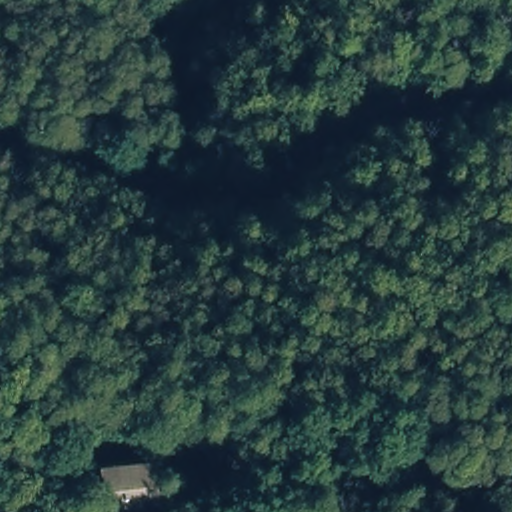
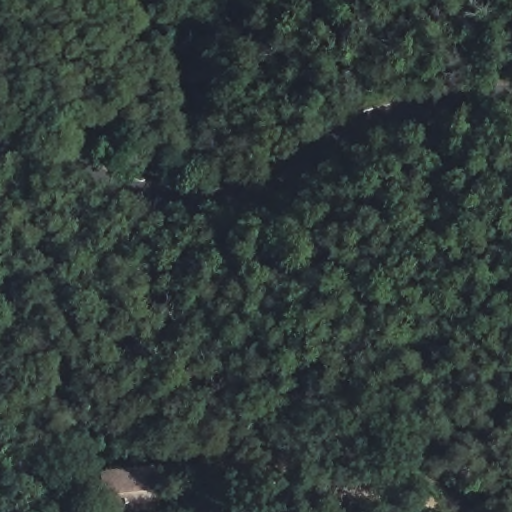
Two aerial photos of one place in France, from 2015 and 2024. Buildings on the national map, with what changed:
unchanged [(162,512),(108,512),(103,475),(158,472),(162,512)]

